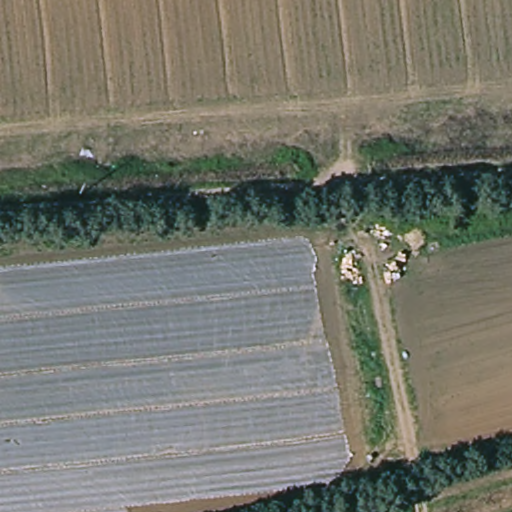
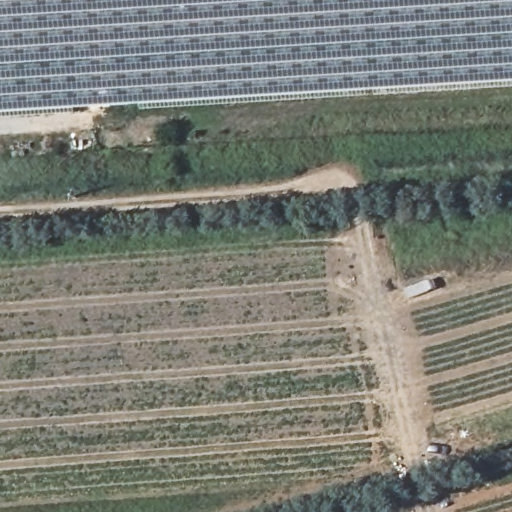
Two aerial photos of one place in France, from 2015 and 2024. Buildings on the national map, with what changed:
new [(512,0),(512,82),(0,114),(0,0),(512,0)]

